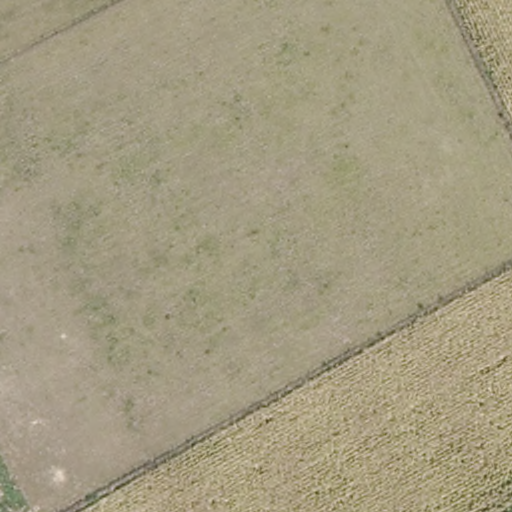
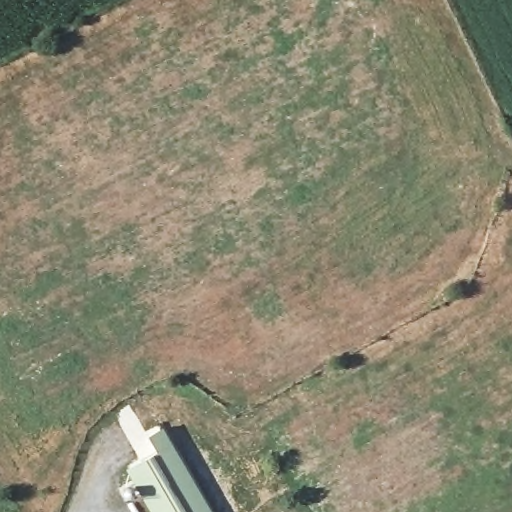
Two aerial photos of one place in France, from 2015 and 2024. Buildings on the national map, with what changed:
new [(151,512),(127,470),(157,453),(148,437),(163,427),(211,512),(151,512)]

